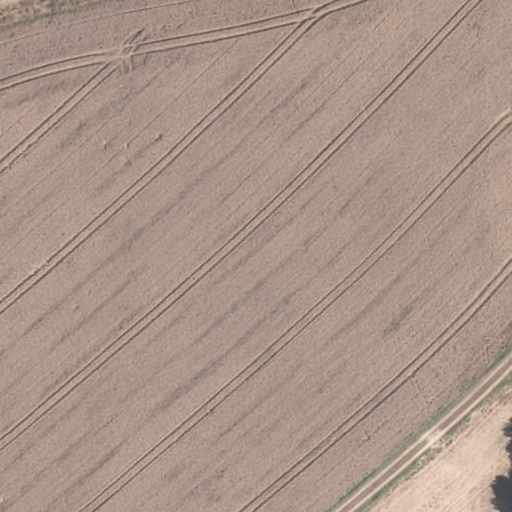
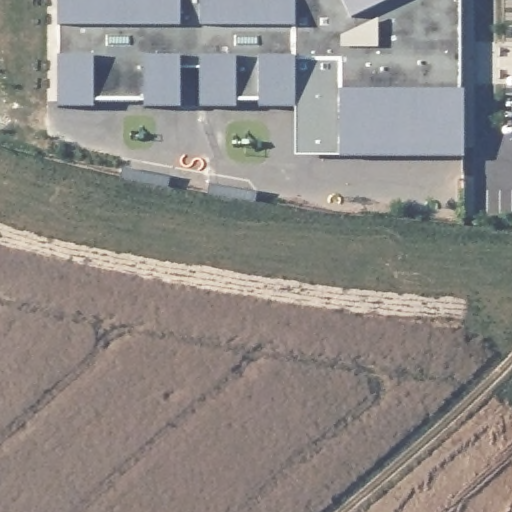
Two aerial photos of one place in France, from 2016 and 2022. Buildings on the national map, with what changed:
new [(294,106),(203,109),(202,70),(180,70),(181,106),(58,109),(59,58),(60,26),(59,0),(456,0),(457,156),(294,159),(294,106)]
new [(123,169),(170,178),(169,188),(121,179),(123,169)]

